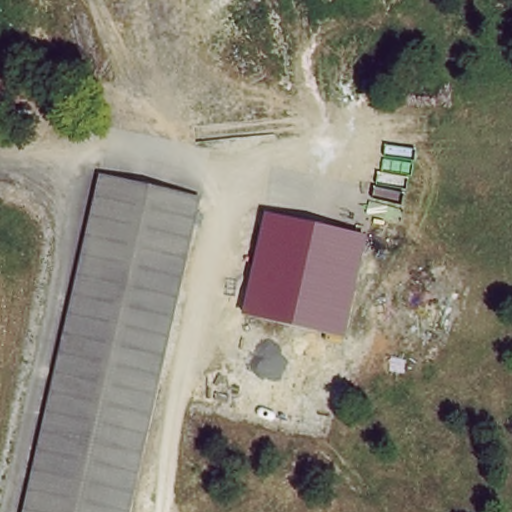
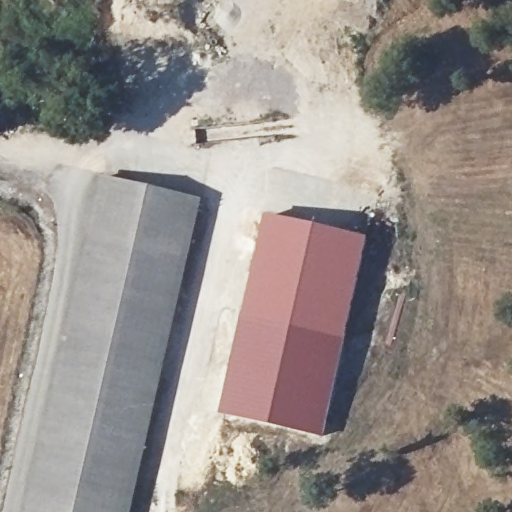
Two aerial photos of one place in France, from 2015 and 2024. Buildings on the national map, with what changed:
unchanged [(24,512),(101,175),(204,200),(132,512),(24,512)]
unchanged [(369,240),(342,337),(246,310),(270,213),(369,240)]
new [(342,337),(321,436),(221,415),(246,310),(342,337)]

